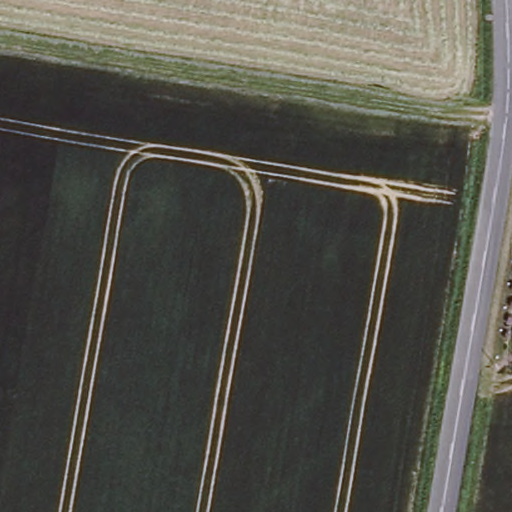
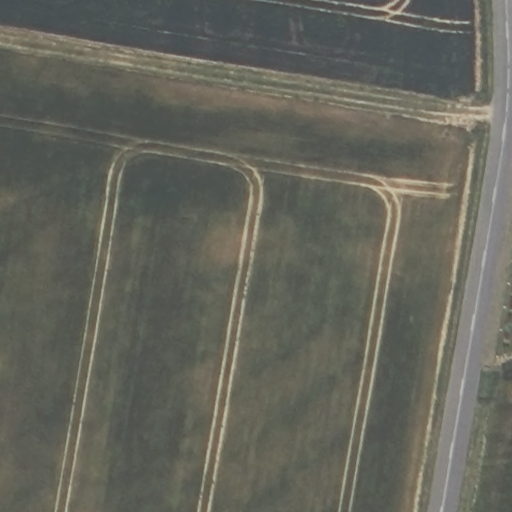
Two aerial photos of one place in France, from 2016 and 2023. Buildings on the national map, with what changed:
[]

